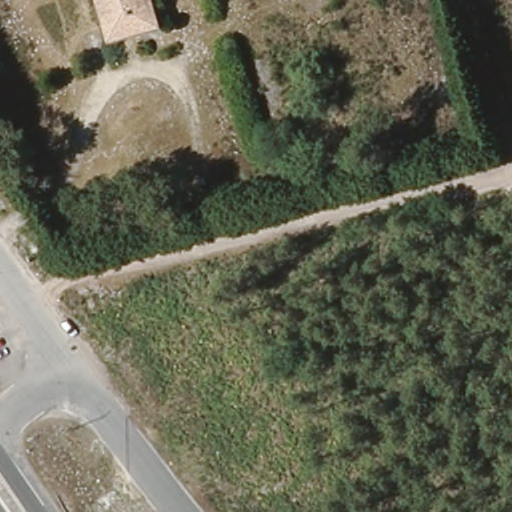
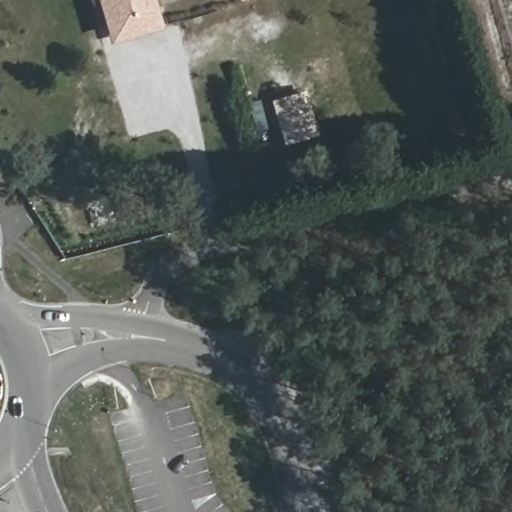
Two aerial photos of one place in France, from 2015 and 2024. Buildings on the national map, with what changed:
unchanged [(102,0),(148,0),(155,24),(112,36),(102,0)]

